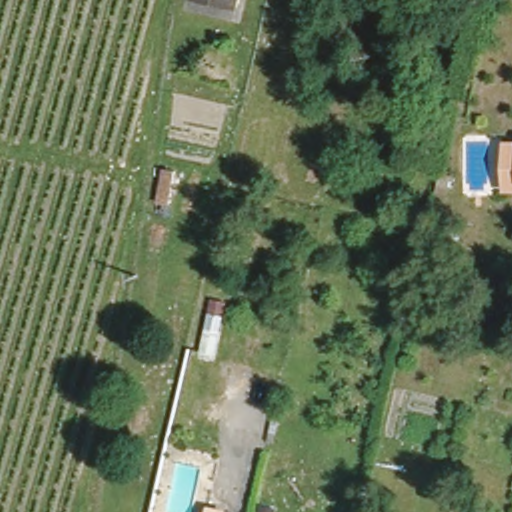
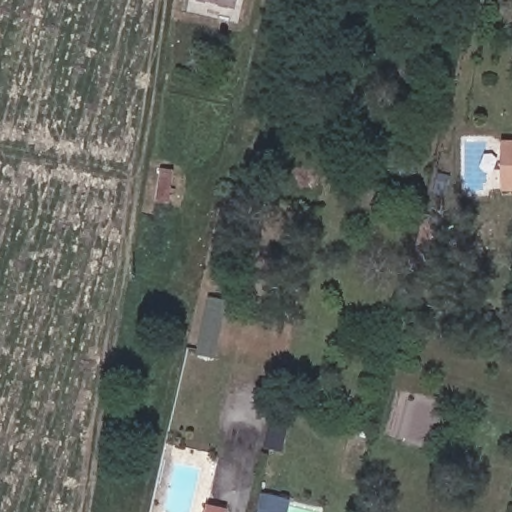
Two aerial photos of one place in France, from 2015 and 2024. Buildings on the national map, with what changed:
unchanged [(228,8),(194,0),(230,0),(228,8)]
unchanged [(512,198),(488,199),(486,154),(511,154),(511,143),(512,143),(512,198)]
unchanged [(158,210),(162,177),(175,179),(171,213),(158,210)]
unchanged [(225,493),(222,512),(201,512),(205,489),(225,493)]

